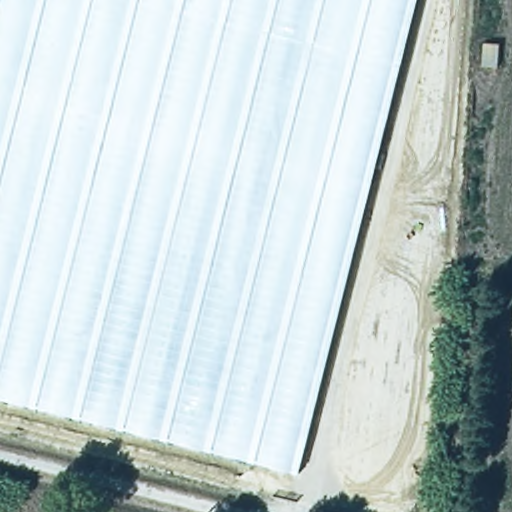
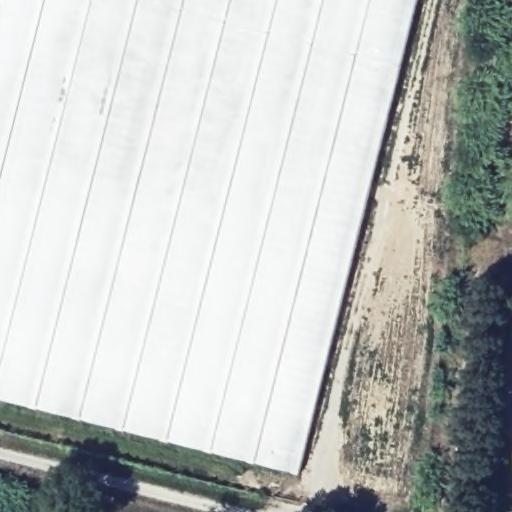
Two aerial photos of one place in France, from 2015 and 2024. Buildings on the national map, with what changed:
unchanged [(0,398),(0,0),(415,0),(295,471),(0,398)]

